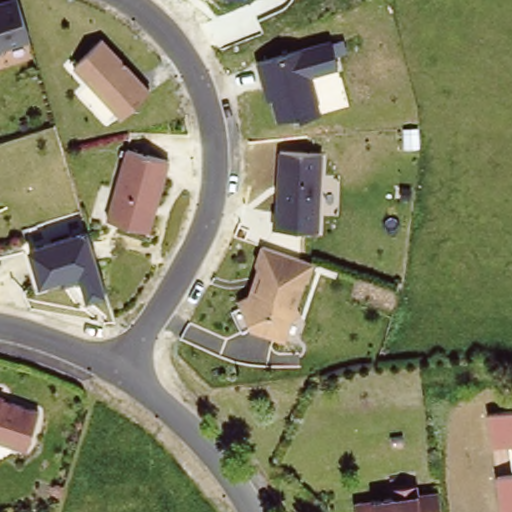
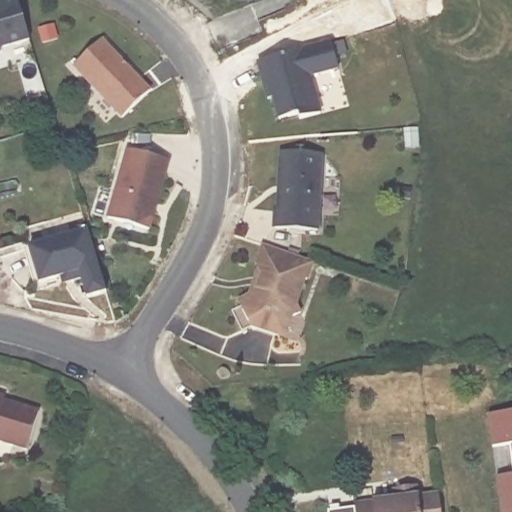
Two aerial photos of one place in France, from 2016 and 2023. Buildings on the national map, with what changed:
unchanged [(16,0),(18,0),(29,42),(2,50),(0,55),(0,4),(16,0)]
unchanged [(302,50),(332,40),(343,37),(347,53),(335,57),(339,69),(310,77),(320,116),(298,120),(297,116),(278,121),(272,100),(265,101),(255,63),(262,61),(302,50)]
unchanged [(102,39),(150,91),(121,120),(72,68),(102,39)]
unchanged [(169,162),(150,231),(107,219),(125,150),(169,162)]
unchanged [(272,229),(277,150),(322,153),(317,231),(272,229)]
unchanged [(60,278),(38,285),(27,246),(87,230),(106,293),(85,299),(80,282),(62,287),(60,278)]
unchanged [(260,245),(314,262),(308,281),(305,281),(297,305),(301,313),(293,316),(285,341),(252,330),(241,307),(237,301),(248,295),(256,268),(254,265),(260,245)]
unchanged [(38,404),(25,446),(0,437),(0,390),(38,404)]
unchanged [(512,475),(507,444),(495,445),(490,413),(512,410),(512,512),(500,512),(495,477),(512,475)]
unchanged [(392,492),(392,485),(416,481),(417,490),(437,487),(439,512),(355,512),(353,497),(392,492)]

